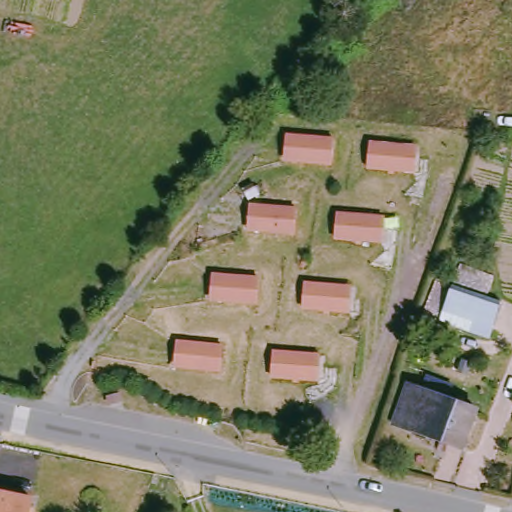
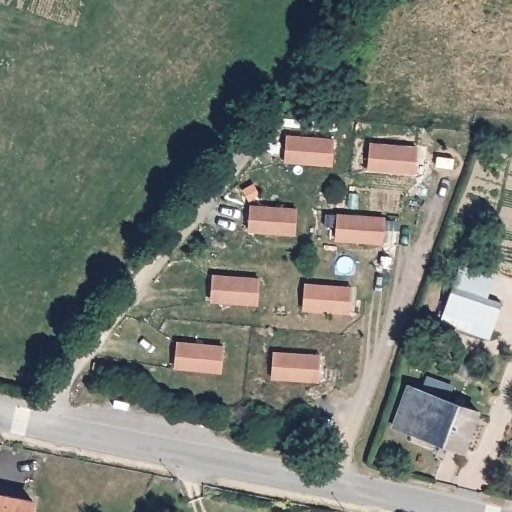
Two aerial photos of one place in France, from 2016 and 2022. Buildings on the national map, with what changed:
unchanged [(327,163),(290,162),(282,161),(284,134),(292,135),(330,138),(327,163)]
unchanged [(411,170),(403,170),(366,167),(368,142),(405,145),(413,145),(411,170)]
unchanged [(292,234),(257,232),(246,231),(247,206),(258,206),(293,208),(292,234)]
unchanged [(380,241),(372,241),(334,239),(335,213),(374,215),(382,215),(380,241)]
unchanged [(257,302),(218,302),(211,302),(212,276),(220,277),(257,277),(257,302)]
unchanged [(347,312),(340,311),(302,308),(304,283),(342,286),(350,287),(347,312)]
unchanged [(442,326),(445,316),(452,292),(502,308),(495,334),(492,343),(442,326)]
unchanged [(182,367),(175,367),(175,341),(182,341),(221,342),(220,367),(182,367)]
unchanged [(272,352),(310,352),(318,352),(318,377),(311,377),(273,378),(272,352)]
unchanged [(432,365),(424,390),(476,410),(463,449),(395,427),(417,361),(432,365)]
unchanged [(0,512),(0,496),(39,501),(37,512),(0,512)]

